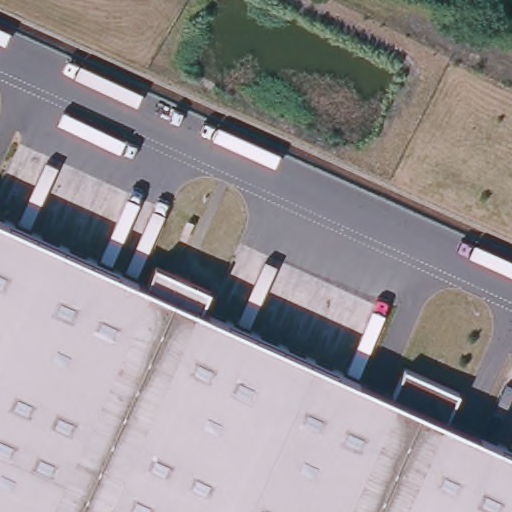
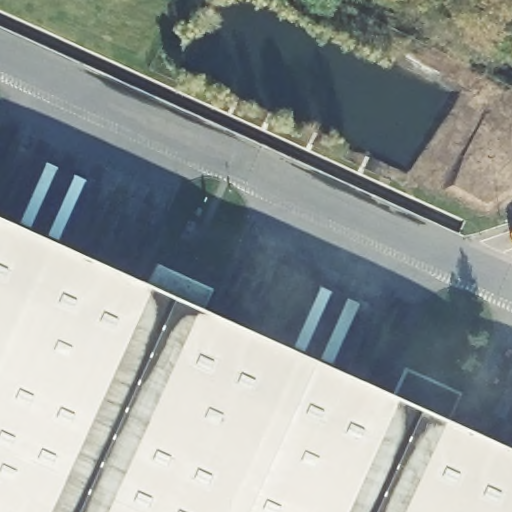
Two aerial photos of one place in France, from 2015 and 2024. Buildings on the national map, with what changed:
unchanged [(156,278),(210,303),(201,322),(393,409),(405,382),(460,407),(448,434),(512,463),(512,512),(0,512),(0,231),(147,298),(156,278)]

